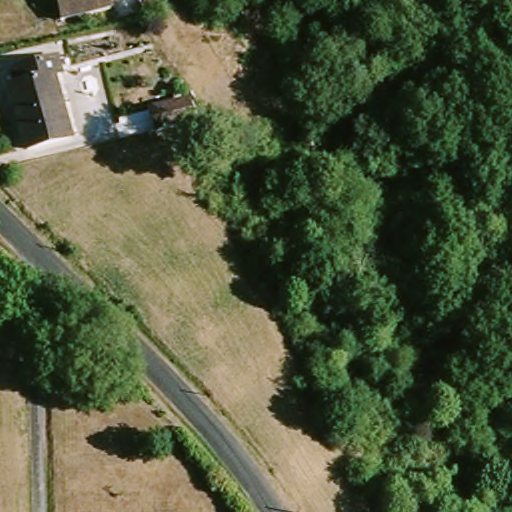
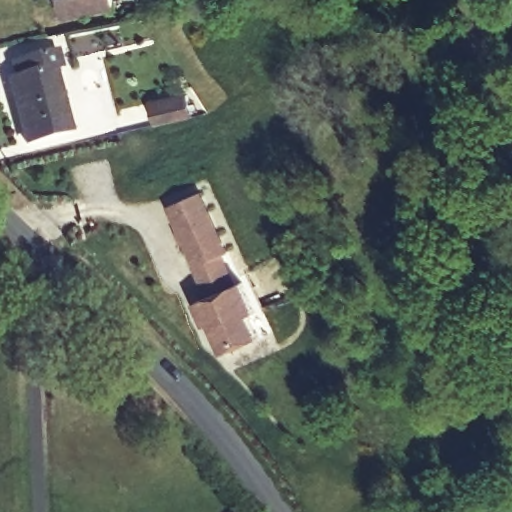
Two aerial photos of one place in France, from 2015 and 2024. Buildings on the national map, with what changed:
unchanged [(60,12),(57,0),(108,0),(109,2),(60,12)]
unchanged [(60,130),(15,140),(2,76),(10,74),(7,60),(53,51),(56,64),(47,66),(60,130)]
unchanged [(152,121),(142,123),(136,100),(170,93),(175,115),(152,121)]
new [(232,250),(227,252),(240,283),(207,297),(168,206),(205,191),(232,250)]
new [(260,313),(252,317),(262,336),(222,354),(211,328),(205,330),(193,303),(207,297),(240,283),(245,280),(260,313)]

